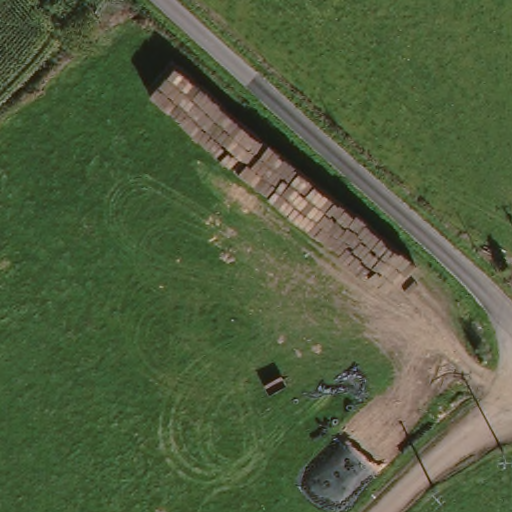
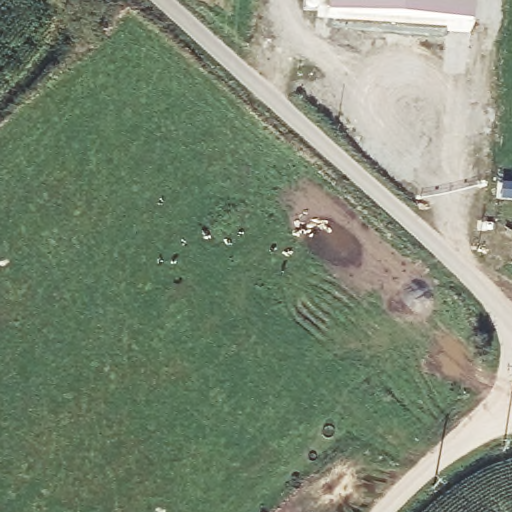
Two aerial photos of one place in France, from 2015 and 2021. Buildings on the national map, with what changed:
new [(472,0),(471,19),(327,11),(328,0),(472,0)]

